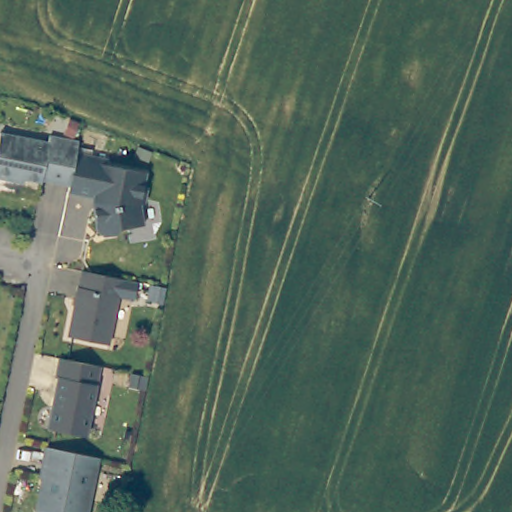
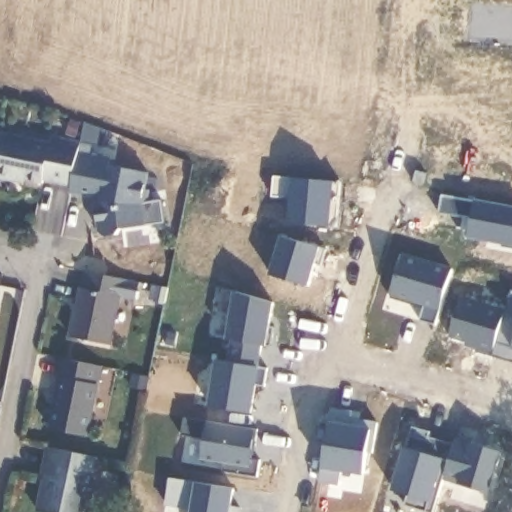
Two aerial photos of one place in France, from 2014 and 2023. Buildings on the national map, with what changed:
unchanged [(70,185),(42,180),(42,182),(24,178),(24,177),(15,175),(15,177),(10,180),(0,178),(0,138),(1,133),(49,143),(50,136),(79,142),(77,154),(70,185)]
unchanged [(77,154),(108,160),(107,165),(147,173),(147,174),(142,173),(139,188),(148,190),(145,203),(141,204),(144,225),(121,229),(116,234),(104,236),(99,232),(95,208),(100,207),(99,198),(69,192),(70,185),(77,154)]
new [(282,238),(327,252),(322,268),(316,266),(309,288),(271,277),(282,238)]
new [(404,258),(454,273),(437,329),(420,324),(425,308),(392,297),(404,258)]
unchanged [(127,280),(123,298),(119,297),(109,345),(69,336),(79,287),(80,288),(83,271),(127,280)]
new [(235,293),(274,305),(270,329),(274,330),(271,350),(261,348),(258,370),(228,364),(231,342),(226,342),(235,293)]
new [(463,300),(508,313),(493,360),(477,355),(479,349),(450,341),(463,300)]
new [(512,300),(512,366),(493,360),(508,313),(512,300)]
unchanged [(101,366),(87,436),(49,428),(59,378),(57,377),(61,358),(101,366)]
new [(217,362),(228,364),(258,370),(268,371),(264,390),(255,388),(250,416),(209,409),(217,362)]
new [(332,411),(352,415),(349,430),(358,431),(359,424),(378,427),(373,457),(368,456),(364,478),(342,474),(339,490),(319,486),(332,411)]
new [(183,420),(257,432),(254,449),(252,449),(250,462),(259,464),(256,480),(221,474),(222,466),(200,463),(204,442),(180,438),(183,420)]
new [(431,436),(428,446),(453,453),(444,483),(438,502),(432,500),(429,512),(411,512),(404,510),(408,499),(393,494),(413,431),(431,436)]
new [(453,453),(456,444),(501,458),(489,497),(444,483),(453,453)]
unchanged [(91,512),(40,512),(49,467),(46,466),(50,448),(101,458),(91,512)]
new [(233,492),(230,509),(239,511),(239,512),(191,512),(164,507),(168,481),(233,492)]

